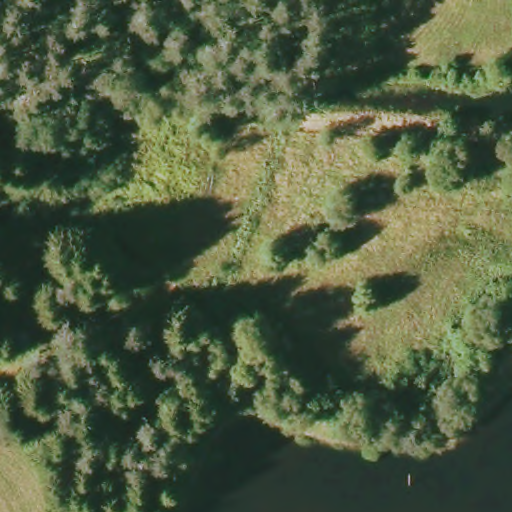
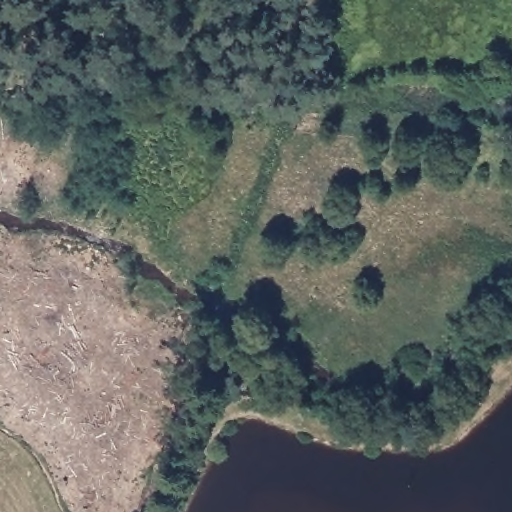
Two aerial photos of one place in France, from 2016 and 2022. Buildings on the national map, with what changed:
[]

